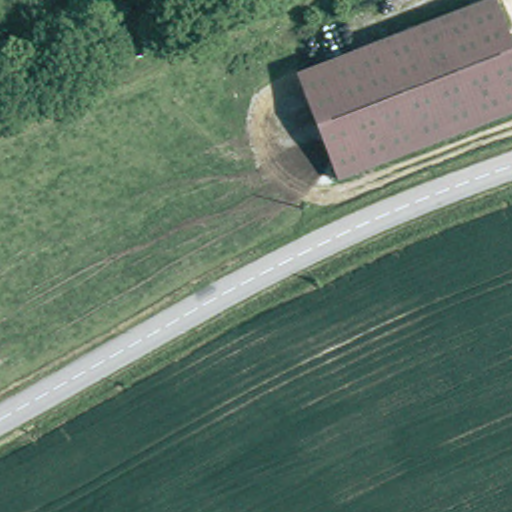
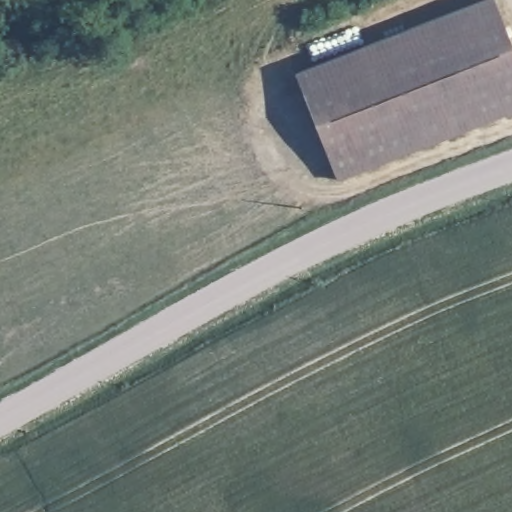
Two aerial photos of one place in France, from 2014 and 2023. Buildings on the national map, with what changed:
unchanged [(336,157),(301,68),(471,0),(500,0),(512,31),(512,86),(336,157)]
unchanged [(344,175),(336,157),(512,86),(512,107),(344,175)]

